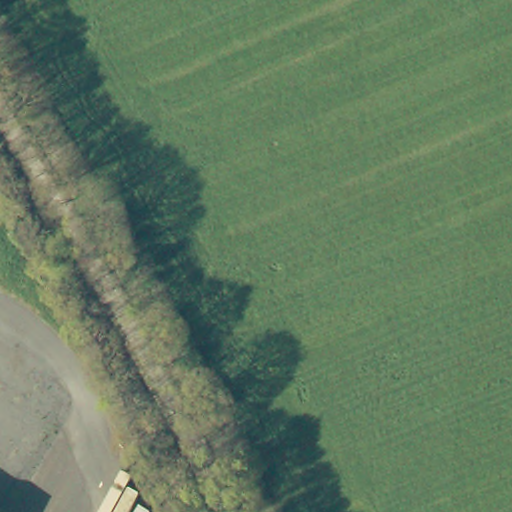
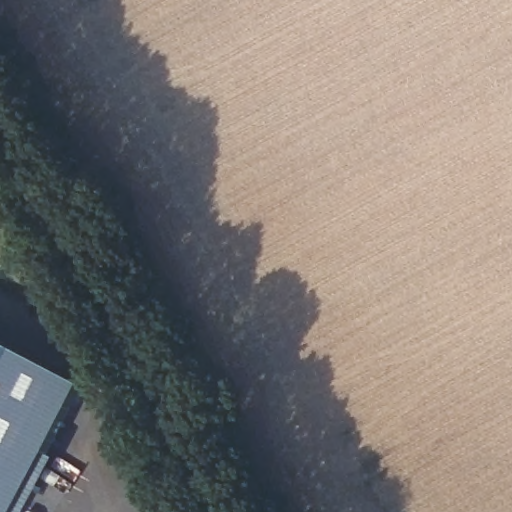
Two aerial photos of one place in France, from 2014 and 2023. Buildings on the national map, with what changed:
new [(58,457),(27,512),(0,512),(0,339),(86,384),(49,451),(58,457)]

